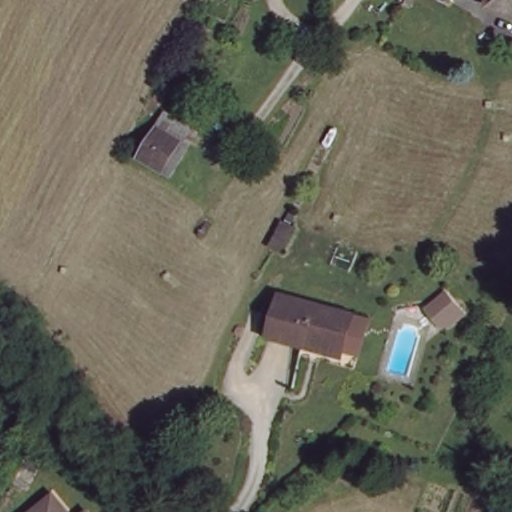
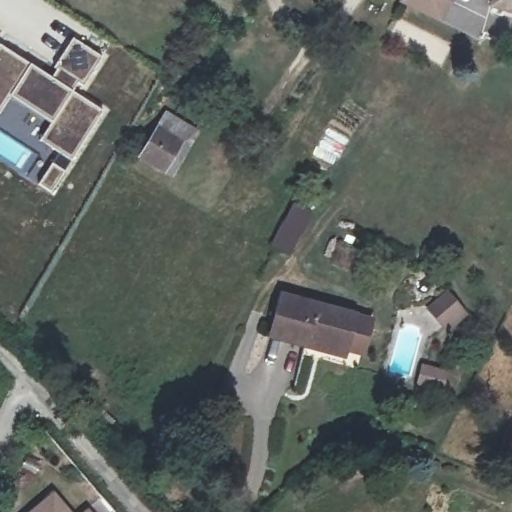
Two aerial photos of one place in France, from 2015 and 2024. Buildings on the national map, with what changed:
unchanged [(494,0),(512,0),(512,22),(494,22),(494,0)]
new [(40,138),(51,121),(9,94),(0,107),(0,45),(48,74),(54,68),(52,66),(71,38),(100,57),(81,85),(77,83),(71,91),(102,111),(70,159),(40,138)]
unchanged [(187,134),(171,165),(145,151),(161,121),(187,134)]
unchanged [(301,342),(268,331),(282,291),(353,314),(341,349),(338,356),(301,342)]
unchanged [(70,512),(28,512),(53,492),(70,512)]
unchanged [(88,512),(84,512),(86,510),(88,512)]

